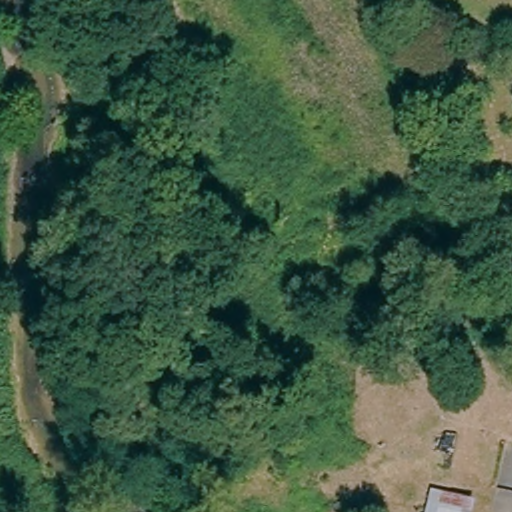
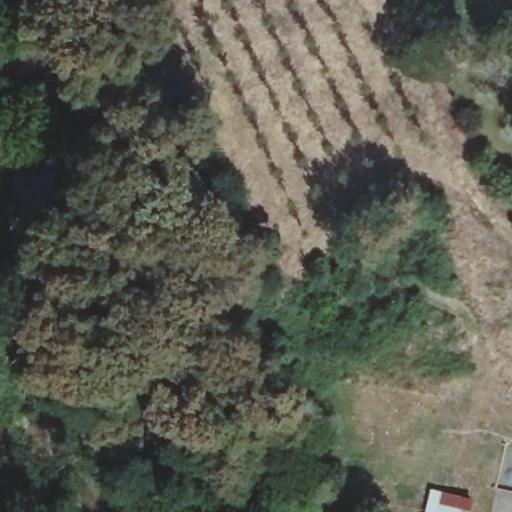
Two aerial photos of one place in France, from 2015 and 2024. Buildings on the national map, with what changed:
unchanged [(468,512),(425,512),(431,487),(472,498),(468,512)]

